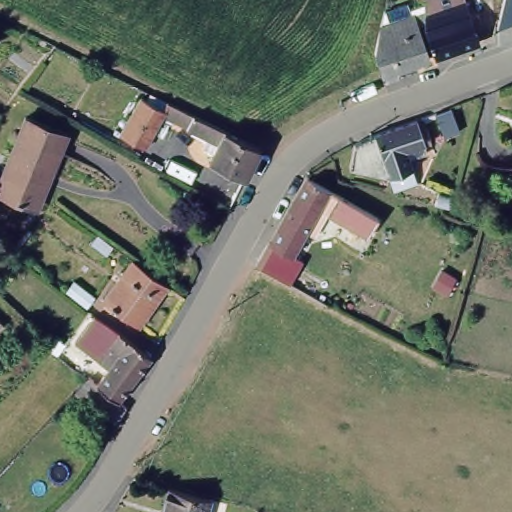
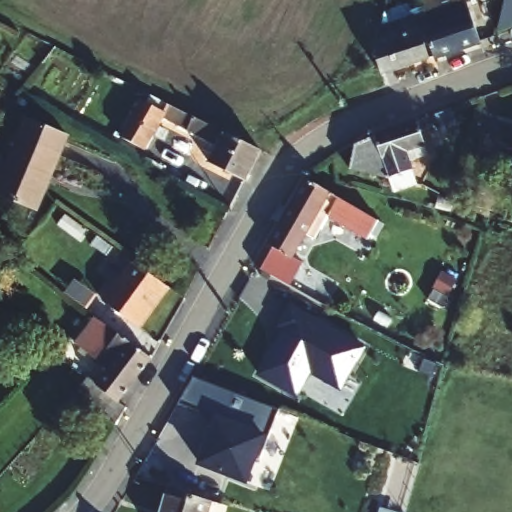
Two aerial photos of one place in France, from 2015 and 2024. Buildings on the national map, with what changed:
unchanged [(475,37),(428,53),(420,29),(419,0),(461,0),(475,37)]
unchanged [(370,49),(376,20),(409,9),(424,54),(377,69),(370,49)]
unchanged [(260,146),(245,176),(209,157),(217,140),(161,111),(143,145),(121,132),(141,94),(163,105),(167,98),(260,146)]
unchanged [(452,109),(460,132),(444,138),(436,115),(452,109)]
unchanged [(393,187),(389,173),(350,165),(353,142),(371,132),(418,116),(428,149),(411,155),(415,164),(412,165),(417,179),(393,187)]
unchanged [(54,168),(50,167),(32,208),(0,195),(0,181),(27,119),(67,136),(54,168)]
unchanged [(511,128),(512,128),(512,131),(511,128)]
unchanged [(303,173),(375,216),(364,234),(325,211),(317,225),(307,218),(287,252),(290,253),(277,276),(252,262),(265,239),(303,173)]
unchanged [(110,244),(103,253),(89,243),(97,234),(110,244)]
unchanged [(167,286),(138,326),(103,300),(133,260),(167,286)]
unchanged [(96,295),(88,306),(67,290),(75,279),(96,295)]
new [(362,349),(340,393),(308,376),(297,401),(253,378),(277,330),(272,328),(288,304),(362,349)]
unchanged [(104,351),(115,359),(110,366),(77,340),(97,314),(119,332),(104,351)]
unchanged [(116,424),(75,393),(88,379),(95,371),(102,376),(110,366),(115,359),(104,351),(119,332),(152,357),(118,401),(127,407),(116,424)]
new [(410,352),(437,365),(430,379),(403,368),(405,362),(410,352)]
new [(265,437),(212,417),(182,404),(195,377),(280,410),(265,437)]
new [(212,417),(265,437),(246,487),(195,467),(212,417)]
unchanged [(202,512),(157,512),(163,489),(205,501),(202,512)]
new [(395,512),(378,512),(379,508),(395,512)]

